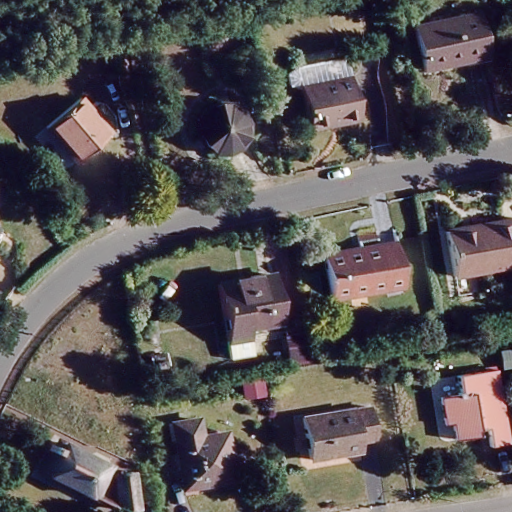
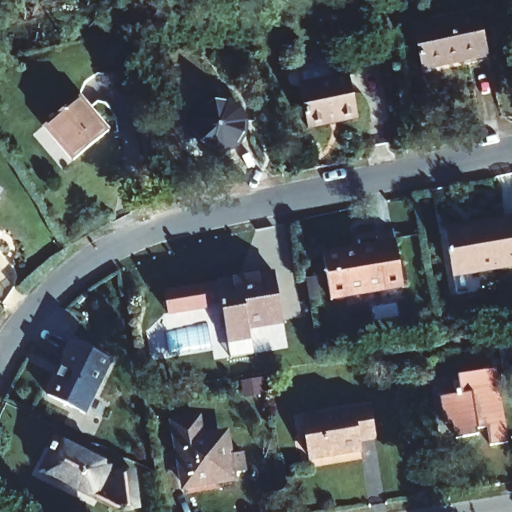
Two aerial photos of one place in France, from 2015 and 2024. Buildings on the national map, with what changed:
unchanged [(477,13),(488,57),(424,71),(414,26),(477,13)]
unchanged [(359,121),(308,131),(299,86),(288,82),(286,72),(294,66),(346,56),(359,121)]
unchanged [(232,100),(245,111),(249,131),(239,145),(226,154),(208,153),(193,143),(188,124),(196,107),(213,98),(232,100)]
unchanged [(108,133),(71,162),(43,127),(80,99),(108,133)]
unchanged [(0,196),(0,181),(7,186),(0,196)]
unchanged [(512,222),(512,271),(456,280),(447,231),(512,222)]
unchanged [(394,241),(404,288),(330,301),(326,279),(321,253),(394,241)]
unchanged [(283,320),(248,326),(250,337),(227,341),(217,284),(276,274),(283,320)]
new [(64,360),(62,358),(70,343),(109,363),(82,416),(45,397),(64,360)]
unchanged [(509,444),(493,447),(489,430),(479,432),(480,436),(458,439),(454,423),(446,424),(441,397),(462,393),(459,375),(496,369),(509,444)]
unchanged [(371,407),(377,441),(360,444),(361,452),(312,459),(305,418),(371,407)]
unchanged [(226,435),(233,481),(183,488),(177,443),(226,435)]
unchanged [(98,505),(46,483),(54,463),(51,461),(53,454),(58,456),(59,452),(110,473),(98,505)]
unchanged [(136,478),(143,511),(130,512),(125,512),(119,482),(136,478)]

